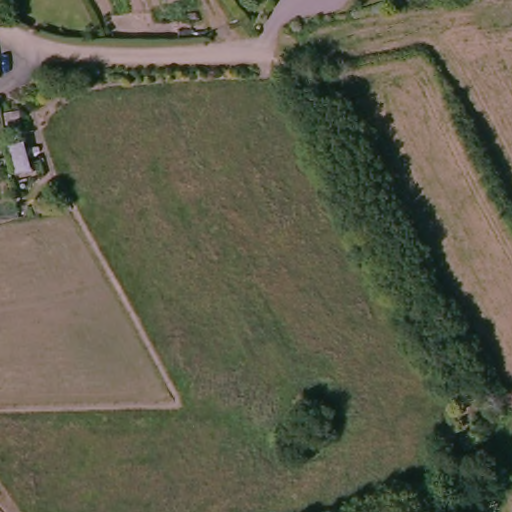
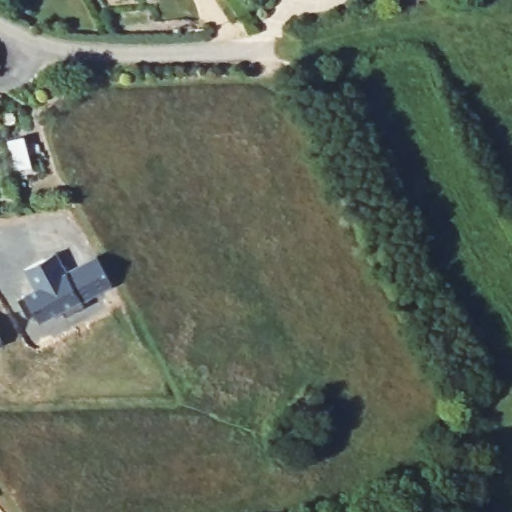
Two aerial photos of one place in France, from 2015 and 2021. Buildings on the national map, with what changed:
unchanged [(30,168),(15,171),(9,143),(23,139),(30,168)]
new [(35,291),(24,271),(44,260),(48,267),(59,261),(66,274),(96,257),(111,285),(81,302),(84,307),(65,317),(61,311),(39,323),(35,316),(27,320),(17,301),(35,291)]
new [(3,343),(0,345),(0,335),(3,343)]

